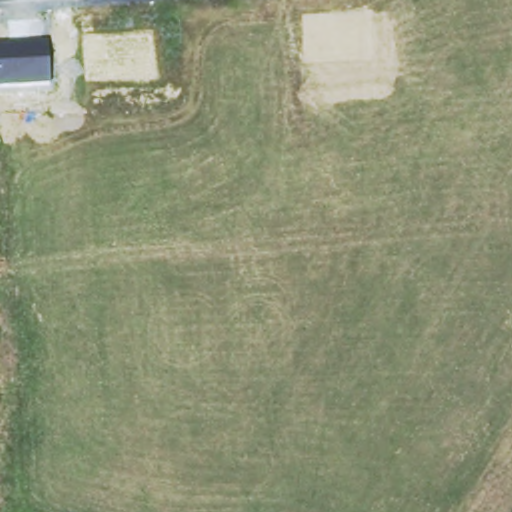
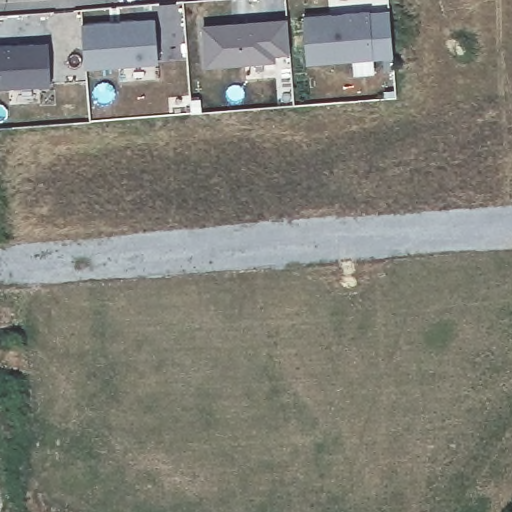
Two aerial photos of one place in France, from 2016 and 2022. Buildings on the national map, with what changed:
new [(333,17),(333,21),(339,21),(345,16),(371,14),(375,60),(308,65),(305,19),(333,17)]
new [(113,25),(113,29),(123,28),(122,24),(158,21),(160,64),(87,69),(84,27),(113,25)]
new [(288,21),(291,54),(276,55),(276,61),(208,66),(205,28),(288,21)]
unchanged [(50,86),(0,90),(0,43),(47,41),(50,86)]

